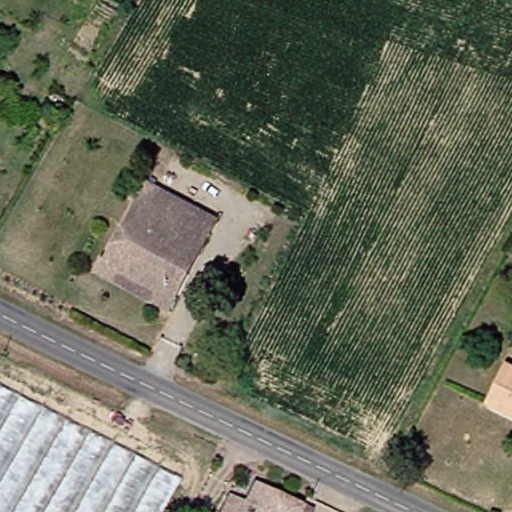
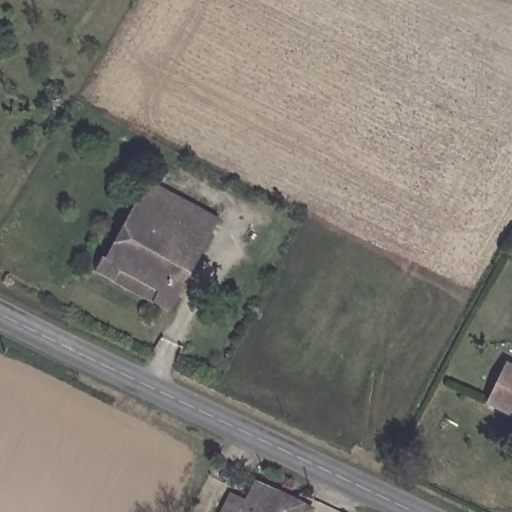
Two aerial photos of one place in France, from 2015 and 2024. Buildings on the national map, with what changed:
unchanged [(123,279),(102,267),(108,254),(151,179),(156,182),(199,206),(225,220),(219,232),(210,247),(182,295),(176,309),(154,296),(123,279)]
unchanged [(509,361),(512,362),(512,413),(488,401),(509,361)]
demolished [(182,476),(162,512),(0,512),(0,383),(182,476)]
unchanged [(309,512),(217,512),(229,489),(248,499),(260,479),(303,500),(313,504),(309,512)]

